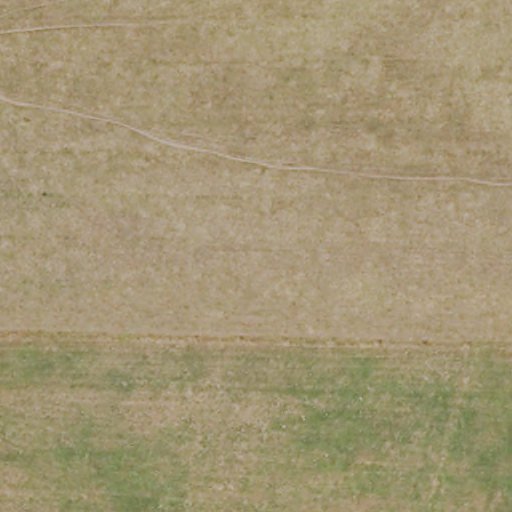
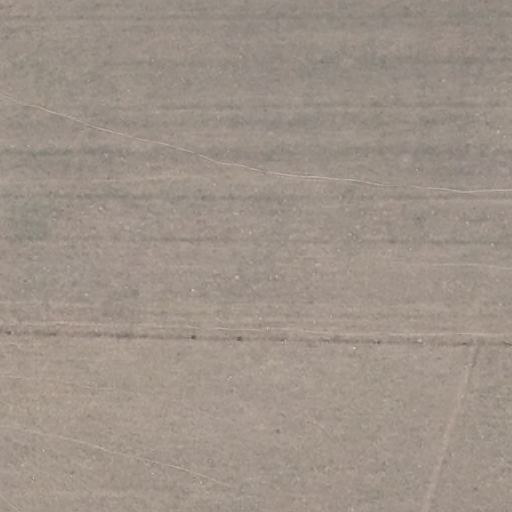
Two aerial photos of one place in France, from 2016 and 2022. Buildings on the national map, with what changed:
[]

